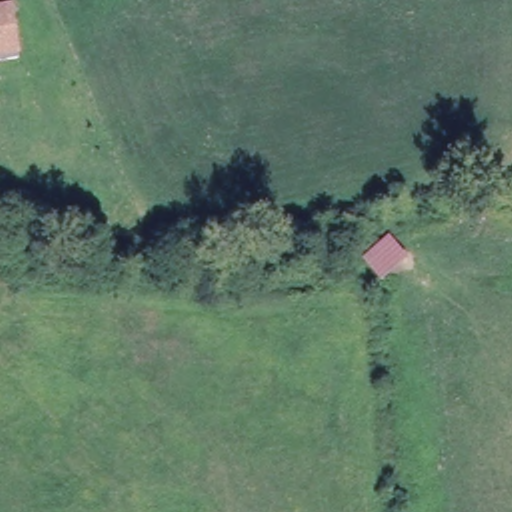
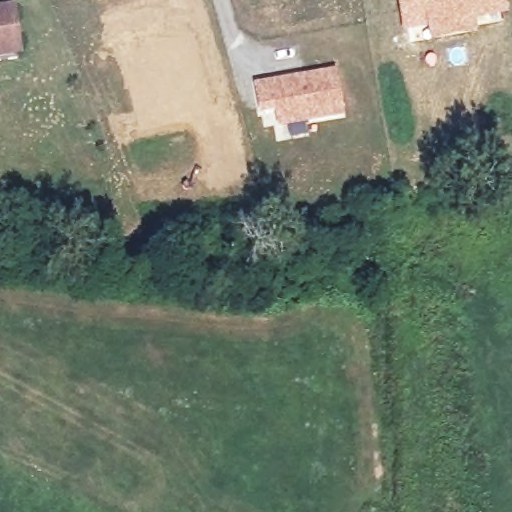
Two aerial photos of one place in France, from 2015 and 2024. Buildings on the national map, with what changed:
new [(98,2),(97,0),(104,0),(98,2)]
new [(506,12),(474,19),(476,32),(430,41),(427,26),(402,30),(396,0),(504,0),(506,12)]
unchanged [(21,51),(0,55),(0,11),(15,8),(21,51)]
new [(344,117),(278,128),(276,112),(260,115),(253,83),(335,68),(344,117)]
unchanged [(389,236),(410,260),(383,283),(363,259),(389,236)]

